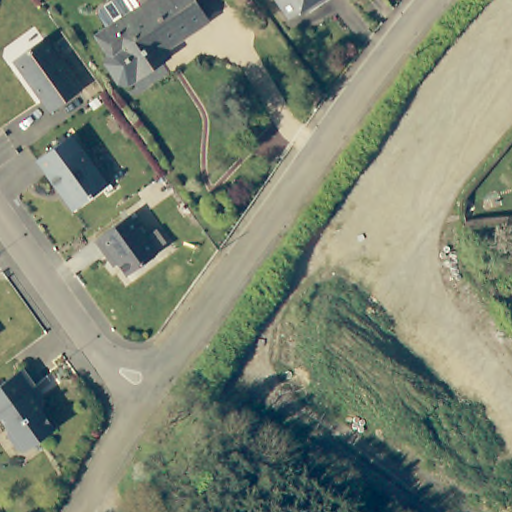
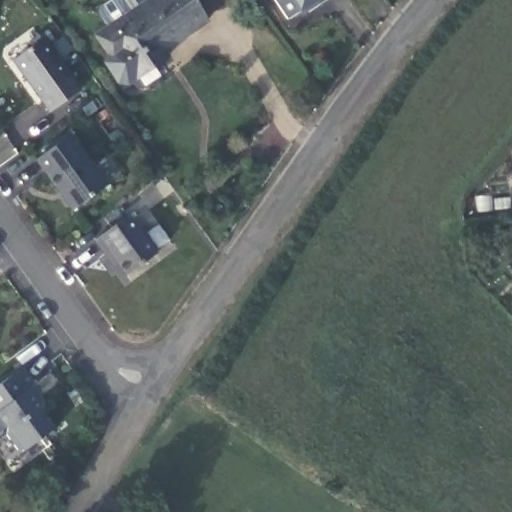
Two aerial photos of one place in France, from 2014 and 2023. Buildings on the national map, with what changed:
unchanged [(113,83),(100,65),(102,55),(90,39),(101,30),(91,17),(92,11),(108,0),(112,0),(114,0),(124,14),(132,9),(126,0),(187,0),(201,20),(158,50),(163,57),(123,85),(113,83)]
unchanged [(285,27),(268,0),(325,0),(285,27)]
unchanged [(46,42),(69,76),(65,78),(74,92),(49,109),(40,93),(30,100),(19,83),(28,78),(16,62),(46,42)]
unchanged [(62,144),(98,196),(65,217),(30,166),(62,144)]
unchanged [(106,254),(98,244),(132,221),(159,260),(132,278),(121,263),(114,267),(106,254)]
unchanged [(25,369),(37,389),(35,392),(44,401),(38,407),(53,430),(21,454),(8,438),(9,424),(1,418),(0,419),(0,388),(25,369)]

